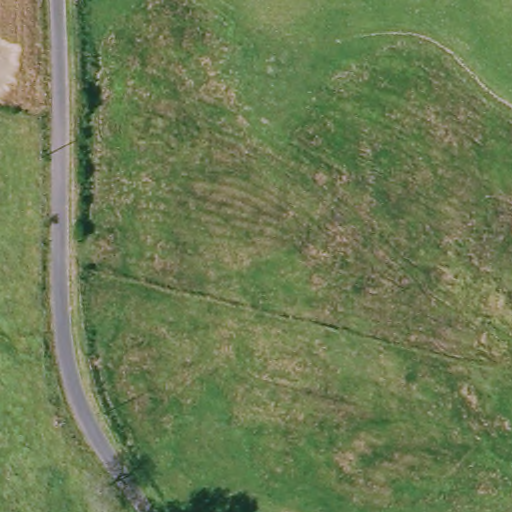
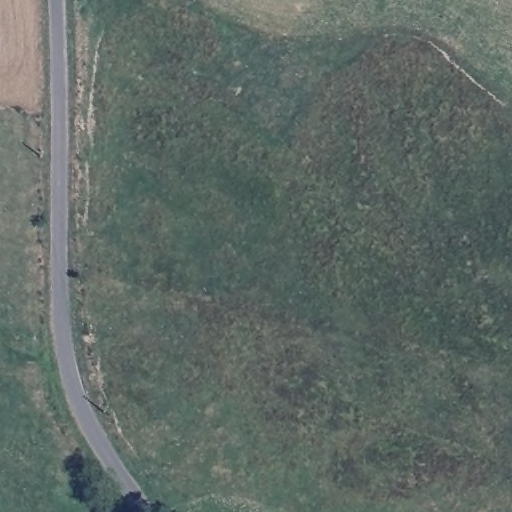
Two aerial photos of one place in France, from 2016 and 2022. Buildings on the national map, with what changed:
[]

